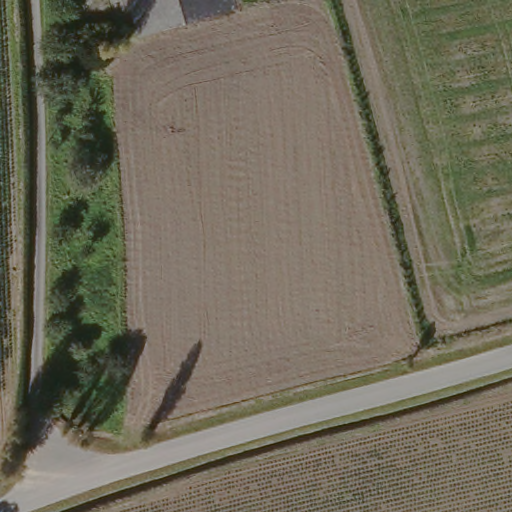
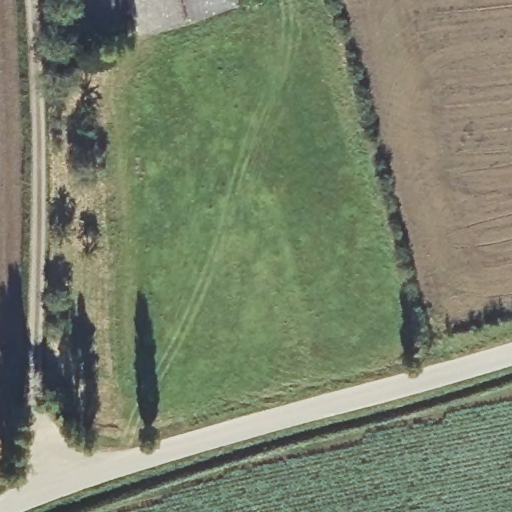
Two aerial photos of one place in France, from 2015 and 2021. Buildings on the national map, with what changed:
unchanged [(230,14),(136,42),(124,6),(122,0),(233,0),(237,12),(230,14)]

